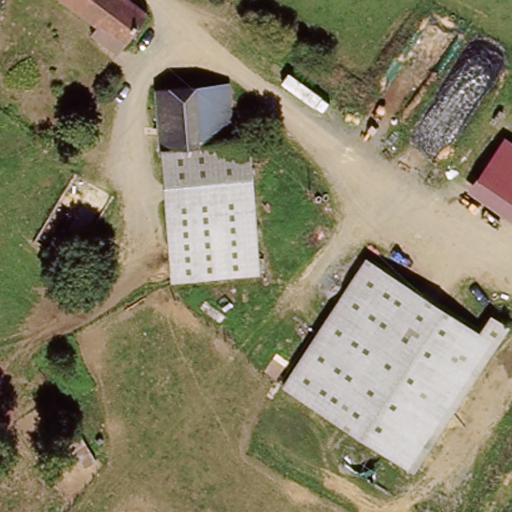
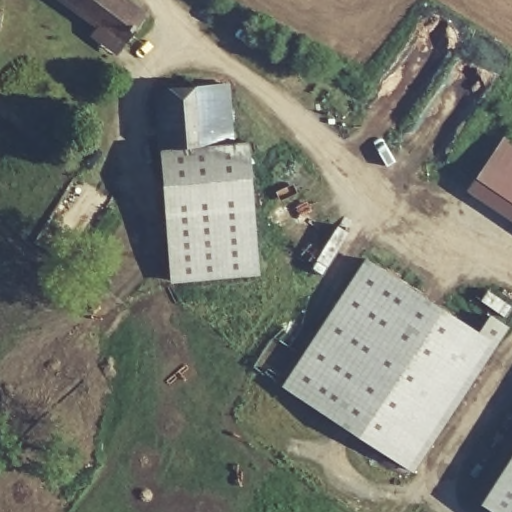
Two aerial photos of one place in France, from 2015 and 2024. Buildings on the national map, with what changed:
unchanged [(58,0),(124,0),(146,16),(124,46),(58,0)]
unchanged [(224,78),(229,136),(161,142),(156,84),(224,78)]
unchanged [(229,136),(244,136),(248,203),(164,211),(164,195),(161,142),(229,136)]
unchanged [(506,136),(512,140),(512,218),(469,190),(506,136)]
unchanged [(166,285),(164,211),(248,203),(251,274),(251,279),(246,279),(166,285)]
unchanged [(414,468),(284,385),(365,259),(495,343),(414,468)]
new [(512,456),(512,512),(494,512),(482,504),(512,456)]

